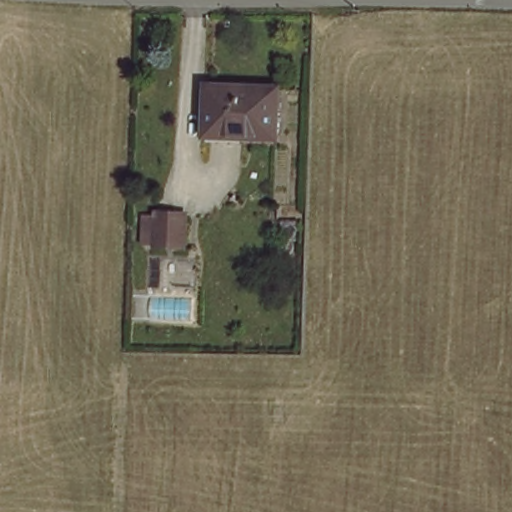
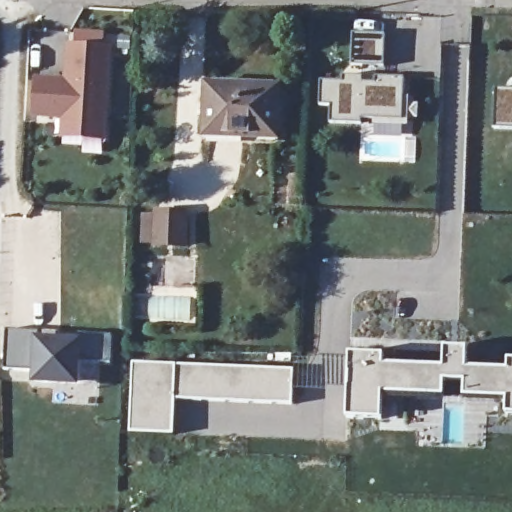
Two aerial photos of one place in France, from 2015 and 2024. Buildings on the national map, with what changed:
new [(344,80),(345,71),(351,71),(352,30),(384,31),(384,74),(402,75),(404,115),(361,115),(361,119),(331,119),(331,101),(321,100),(321,79),(344,80)]
new [(58,139),(60,120),(30,119),(33,77),(62,79),(65,44),(111,46),(105,142),(58,139)]
unchanged [(279,88),(277,137),(207,135),(208,85),(279,88)]
new [(512,90),(512,128),(494,127),(496,90),(512,90)]
unchanged [(156,215),(186,215),(186,245),(156,245),(156,215)]
new [(81,324),(81,331),(110,331),(109,357),(80,358),(79,378),(30,378),(29,365),(3,365),(5,321),(81,324)]
new [(386,345),(386,356),(444,360),(445,340),(468,340),(468,360),(507,362),(508,351),(512,351),(512,416),(508,416),(506,394),(464,392),(465,375),(445,375),(445,395),(384,392),(384,420),(346,420),(349,345),(386,345)]
new [(293,363),(291,403),(176,400),(174,428),(129,427),(132,358),(293,363)]

